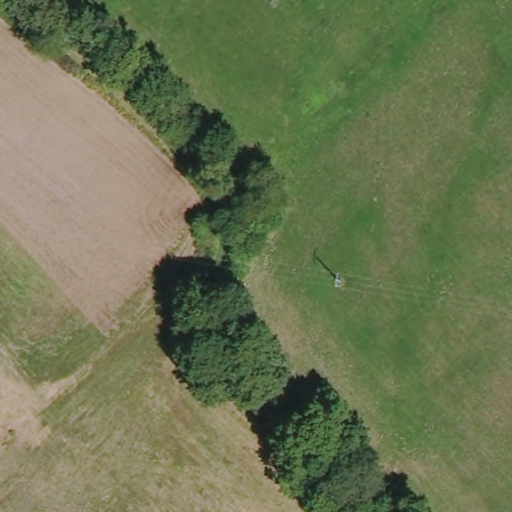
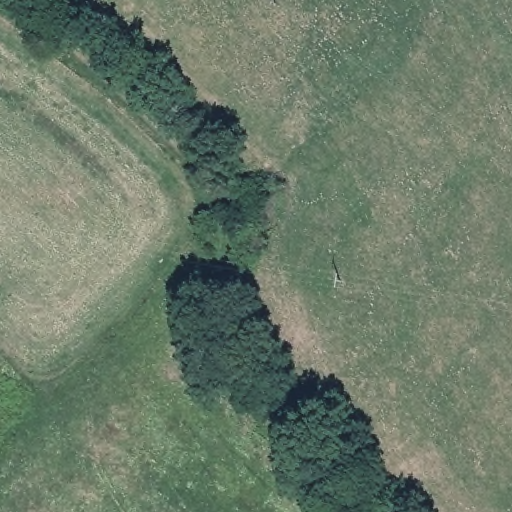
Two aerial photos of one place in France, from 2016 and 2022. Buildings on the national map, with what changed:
[]

